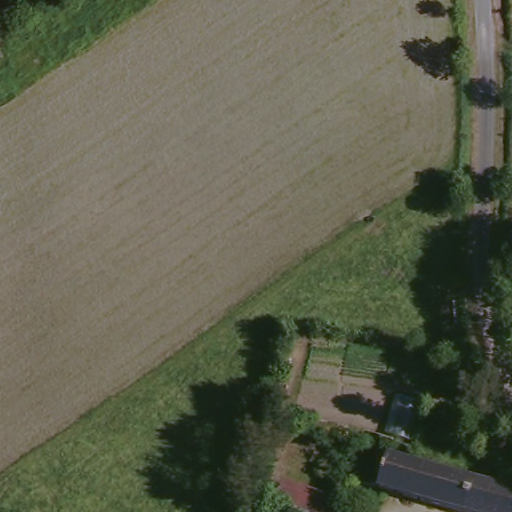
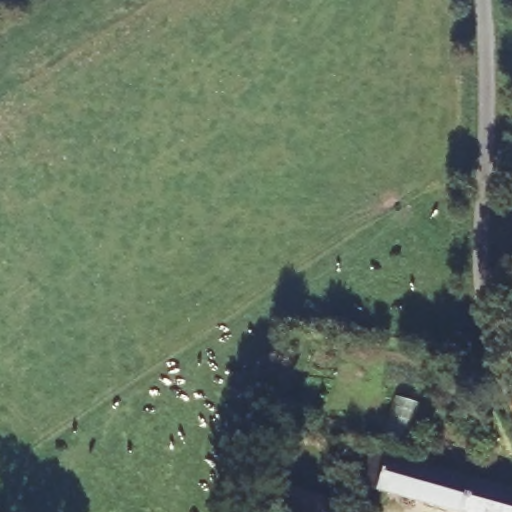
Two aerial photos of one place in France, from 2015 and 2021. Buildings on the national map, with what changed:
unchanged [(449,512),(373,490),(382,455),(512,491),(512,512),(449,512)]
unchanged [(275,512),(282,492),(340,511),(340,512),(275,512)]

